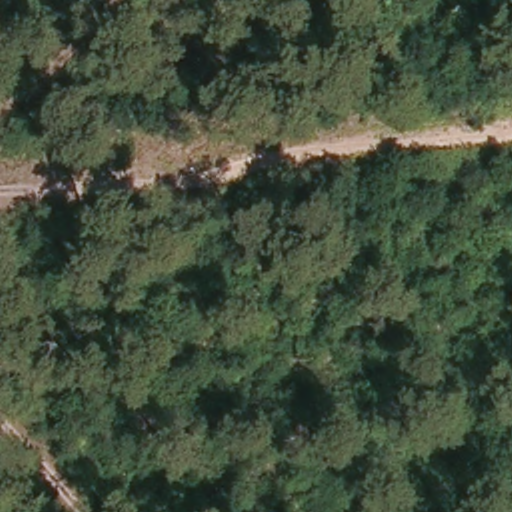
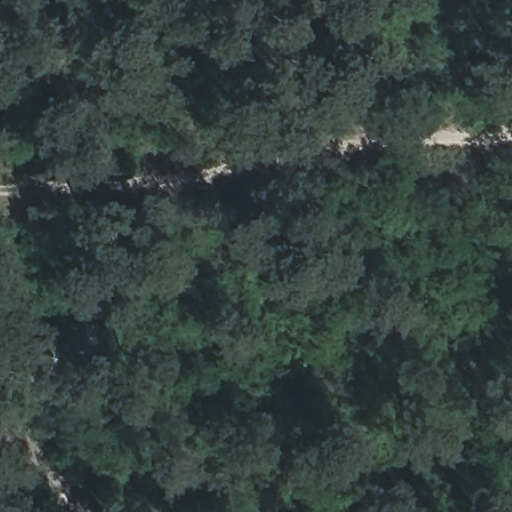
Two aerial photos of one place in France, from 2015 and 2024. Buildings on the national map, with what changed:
[]

